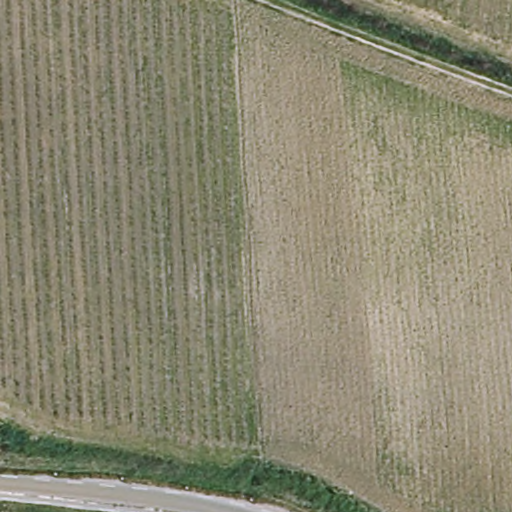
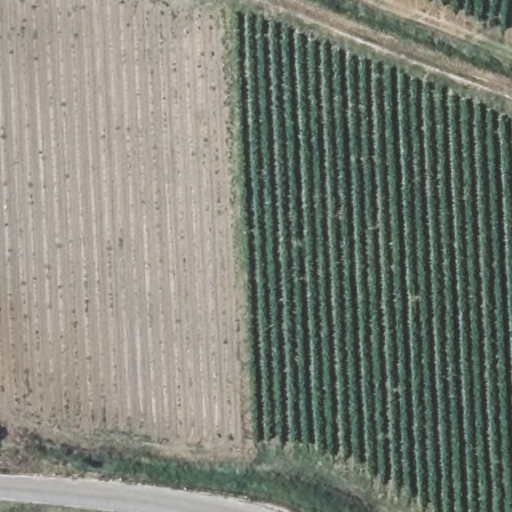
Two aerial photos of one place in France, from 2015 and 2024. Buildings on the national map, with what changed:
[]

